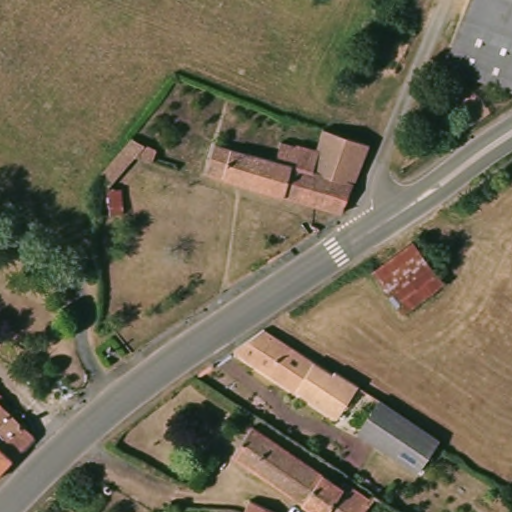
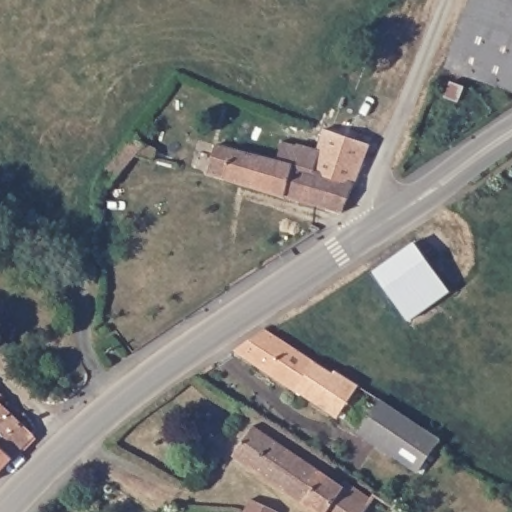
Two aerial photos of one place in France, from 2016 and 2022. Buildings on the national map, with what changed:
unchanged [(512,87),(449,64),(472,0),(512,0),(512,87)]
unchanged [(212,168),(216,152),(290,172),(297,153),(318,158),(325,137),(371,150),(344,215),(222,184),(225,171),(212,168)]
unchanged [(145,147),(114,186),(102,178),(134,138),(145,147)]
unchanged [(418,239),(448,281),(408,310),(377,268),(418,239)]
unchanged [(268,335),(336,379),(338,375),(362,390),(343,421),(237,355),(268,335)]
unchanged [(445,435),(425,470),(363,434),(384,398),(445,435)]
unchanged [(42,437),(1,484),(0,484),(0,399),(42,437)]
unchanged [(234,419),(282,449),(264,478),(217,448),(234,419)]
unchanged [(326,476),(330,470),(358,486),(360,483),(387,501),(380,512),(317,512),(264,478),(282,449),(326,476)]
unchanged [(280,508),(282,509),(281,512),(248,512),(252,498),(280,508)]

